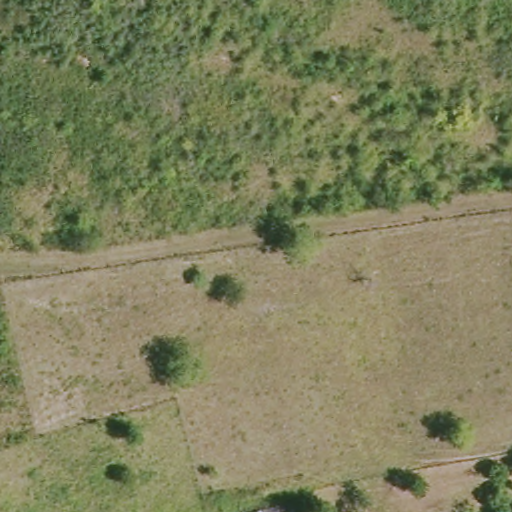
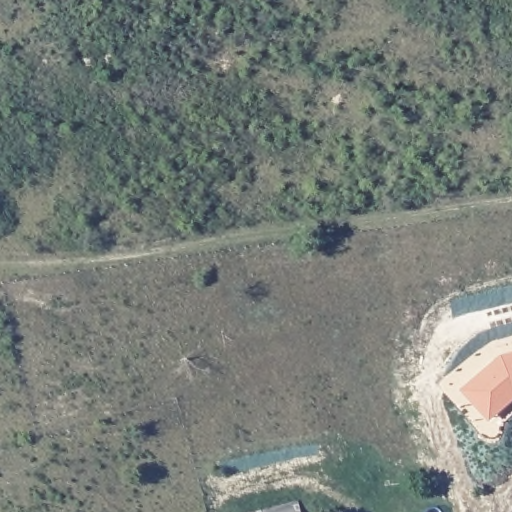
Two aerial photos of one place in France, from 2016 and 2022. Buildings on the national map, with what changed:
new [(460,391),(501,357),(512,354),(512,399),(485,422),(460,391)]
unchanged [(302,512),(238,512),(298,497),(302,512)]

